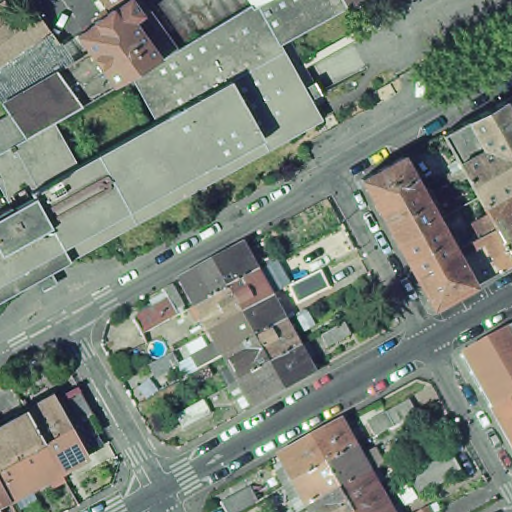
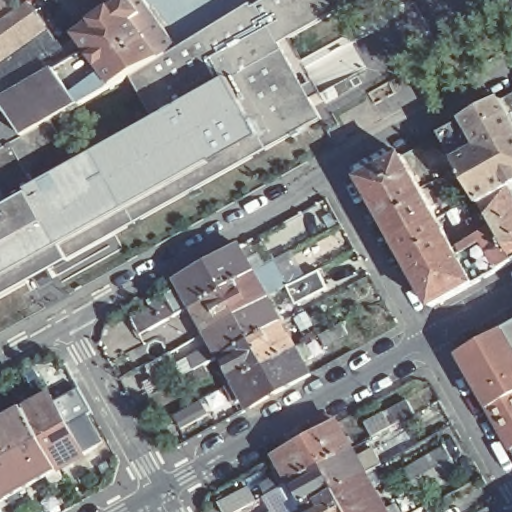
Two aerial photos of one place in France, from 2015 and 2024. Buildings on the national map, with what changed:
unchanged [(2,0),(8,0),(15,9),(27,0),(32,0),(72,56),(0,97),(0,96),(0,1),(2,0)]
unchanged [(112,3),(113,5),(120,0),(135,0),(141,9),(150,21),(141,27),(161,54),(138,67),(131,71),(122,76),(115,80),(90,46),(78,30),(95,18),(93,16),(112,3)]
unchanged [(252,0),(253,2),(257,0),(360,0),(347,7),(345,3),(280,37),(322,114),(265,146),(225,81),(157,115),(131,71),(138,67),(161,54),(173,46),(178,43),(249,0),(252,0)]
unchanged [(252,0),(257,0),(253,2),(252,0)]
unchanged [(9,109),(0,97),(72,56),(90,46),(115,80),(53,115),(78,159),(157,115),(225,81),(265,146),(70,255),(30,277),(0,294),(0,208),(11,202),(0,183),(0,114),(9,109)]
unchanged [(482,203),(482,204),(478,197),(462,168),(460,166),(442,134),(504,100),(512,95),(512,112),(511,113),(512,115),(512,187),(510,188),(482,203)]
unchanged [(403,155),(421,187),(380,211),(362,179),(403,155)]
unchanged [(421,187),(422,188),(438,218),(397,241),(380,211),(421,187)]
unchanged [(512,187),(512,191),(510,188),(512,187)]
unchanged [(487,277),(475,284),(455,248),(477,236),(470,223),(488,213),(482,203),(510,188),(512,191),(512,263),(500,269),(487,277)]
unchanged [(438,218),(438,219),(455,248),(413,272),(397,241),(438,218)]
unchanged [(265,267),(262,262),(254,247),(265,240),(273,255),(277,261),(265,267)]
unchanged [(235,400),(228,386),(230,385),(224,374),(230,370),(223,356),(217,359),(211,348),(217,345),(208,331),(201,317),(195,321),(189,309),(195,306),(180,280),(210,263),(240,247),(254,273),(264,268),(270,279),(287,271),(293,283),(305,278),(312,274),(317,271),(309,258),(334,244),(342,258),(322,268),(330,285),(335,294),(310,308),(300,313),(295,304),(285,310),(275,294),(268,298),(282,323),(296,348),(307,343),(315,357),(304,362),(311,375),(281,391),(252,408),(245,395),(235,400)]
unchanged [(433,307),(413,272),(455,248),(475,284),(433,307)]
unchanged [(155,308),(150,301),(165,293),(162,289),(172,284),(184,307),(181,308),(182,312),(177,315),(163,323),(162,324),(142,336),(133,320),(155,308)]
unchanged [(343,323),(343,322),(350,333),(327,346),(321,335),(343,323)]
unchanged [(512,340),(506,329),(510,326),(512,326),(512,340)]
unchanged [(197,327),(202,335),(187,343),(182,335),(197,327)]
unchanged [(506,329),(512,340),(512,397),(490,409),(460,354),(506,329)]
unchanged [(171,352),(187,343),(192,353),(177,362),(178,364),(157,377),(150,364),(157,360),(171,352)]
unchanged [(205,366),(211,376),(195,385),(190,375),(205,366)]
unchanged [(27,410),(53,395),(56,401),(80,388),(93,412),(70,426),(86,455),(60,469),(65,478),(52,485),(47,476),(33,484),(9,497),(0,502),(0,425),(27,410)]
unchanged [(512,397),(512,447),(490,409),(512,397)]
unchanged [(209,414),(182,429),(175,416),(190,407),(202,401),(209,414)]
unchanged [(385,413),(408,401),(415,414),(392,427),(375,437),(367,423),(385,413)]
unchanged [(307,507),(300,495),(291,500),(284,487),(276,472),(285,467),(278,455),(308,439),(338,422),(352,448),(353,449),(357,458),(375,449),(383,465),(376,469),(384,483),(375,488),(380,499),(387,511),(397,506),(400,512),(310,512),(307,507)]
unchanged [(420,494),(412,481),(407,470),(425,459),(447,446),(453,459),(460,471),(420,494)]
unchanged [(247,487),(255,502),(238,512),(225,512),(220,503),(247,487)]
unchanged [(427,506),(431,512),(417,512),(427,506)]

